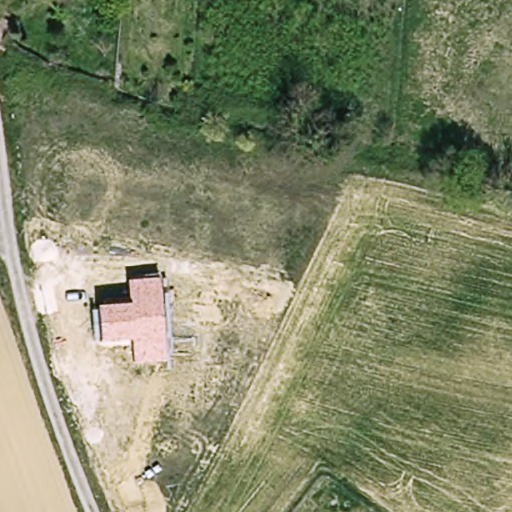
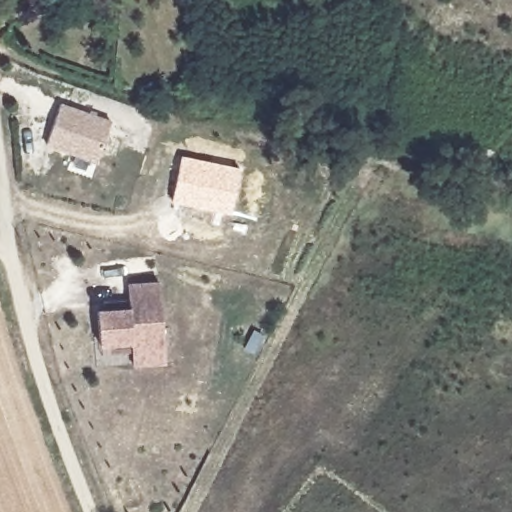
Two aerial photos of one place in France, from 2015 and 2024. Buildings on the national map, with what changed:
new [(110,121),(94,163),(46,146),(60,102),(110,121)]
new [(231,212),(171,203),(180,155),(241,167),(231,212)]
unchanged [(159,281),(166,362),(133,365),(132,343),(100,345),(97,309),(129,306),(127,283),(159,281)]

